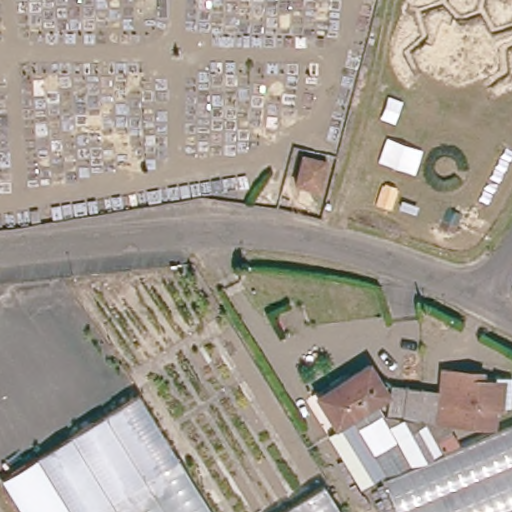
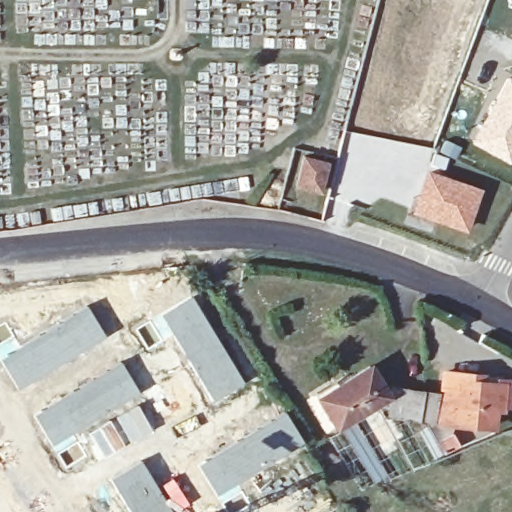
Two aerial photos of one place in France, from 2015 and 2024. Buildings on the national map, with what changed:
new [(512,77),(512,157),(509,163),(470,141),(506,74),(512,77)]
unchanged [(328,164),(320,194),(295,187),(302,157),(328,164)]
new [(426,168),(482,188),(466,232),(409,212),(426,168)]
new [(213,401),(159,315),(189,296),(243,383),(213,401)]
new [(18,389),(0,359),(0,358),(86,305),(104,335),(18,389)]
new [(52,445),(33,415),(120,362),(138,392),(52,445)]
unchanged [(314,395),(334,382),(337,386),(368,366),(387,396),(336,429),(314,395)]
unchanged [(474,376),(483,377),(482,385),(497,386),(504,387),(502,409),(495,408),(493,426),(439,422),(443,374),(474,376)]
unchanged [(434,423),(402,418),(386,416),(391,386),(405,388),(438,392),(434,423)]
demolished [(141,397),(181,460),(96,512),(24,512),(4,481),(141,397)]
unchanged [(425,423),(437,444),(443,456),(382,482),(381,478),(361,491),(328,437),(378,407),(383,417),(425,423)]
new [(216,497),(196,465),(284,411),(303,443),(216,497)]
unchanged [(443,454),(437,443),(451,435),(457,446),(443,454)]
new [(141,460),(173,512),(130,512),(110,479),(141,460)]

